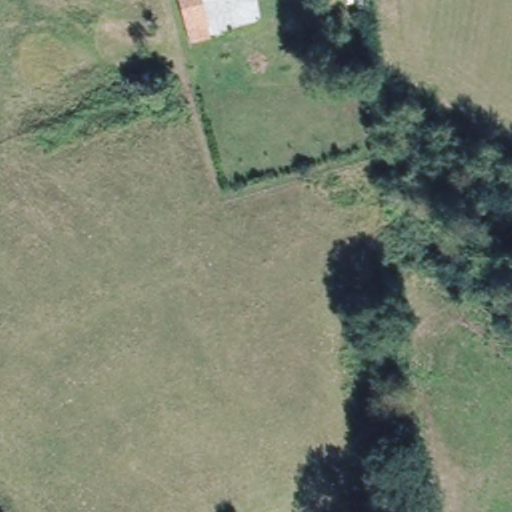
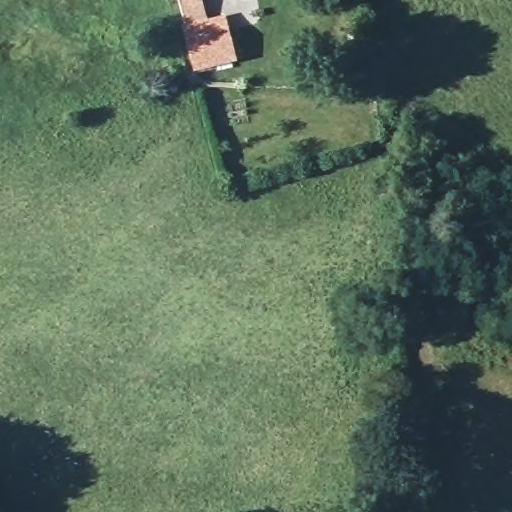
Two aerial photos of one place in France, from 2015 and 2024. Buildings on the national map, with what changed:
unchanged [(178,25),(175,15),(172,0),(200,0),(202,9),(205,19),(178,25)]
new [(225,14),(236,61),(195,72),(181,24),(205,19),(225,14)]

